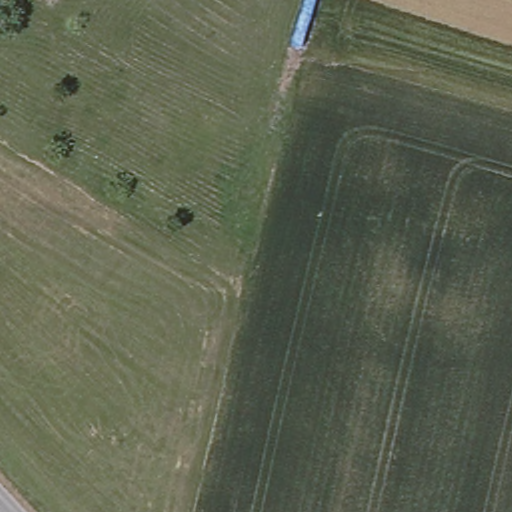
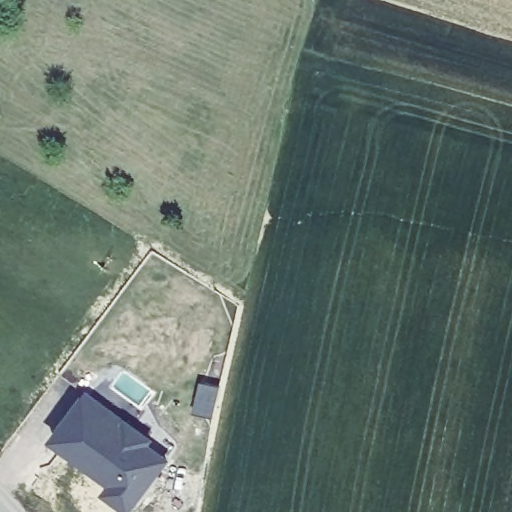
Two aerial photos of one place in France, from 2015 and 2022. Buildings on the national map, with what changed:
new [(154,437),(150,443),(171,459),(131,512),(126,512),(101,493),(108,485),(48,440),(88,391),(154,437)]

